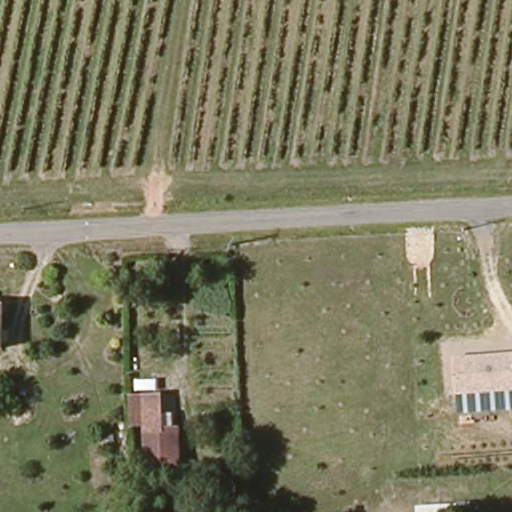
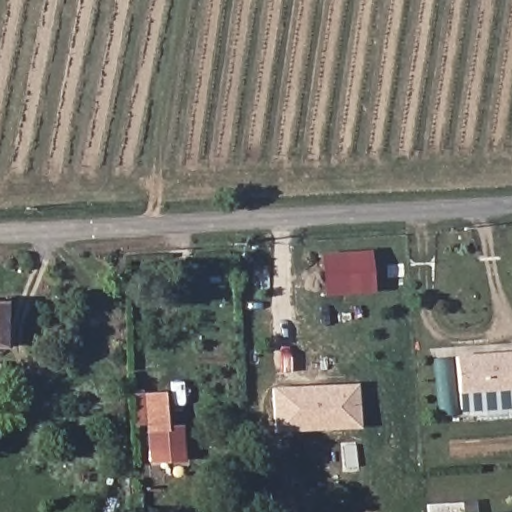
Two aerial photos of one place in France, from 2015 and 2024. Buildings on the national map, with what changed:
new [(323,296),(322,254),(371,251),(375,293),(323,296)]
unchanged [(11,304),(10,348),(0,348),(0,304),(11,304)]
unchanged [(455,355),(512,352),(512,391),(458,396),(455,355)]
new [(358,430),(272,433),(270,387),(355,385),(358,430)]
new [(512,409),(459,413),(458,396),(512,391),(512,409)]
unchanged [(177,458),(146,460),(145,394),(160,395),(161,428),(175,428),(177,458)]

